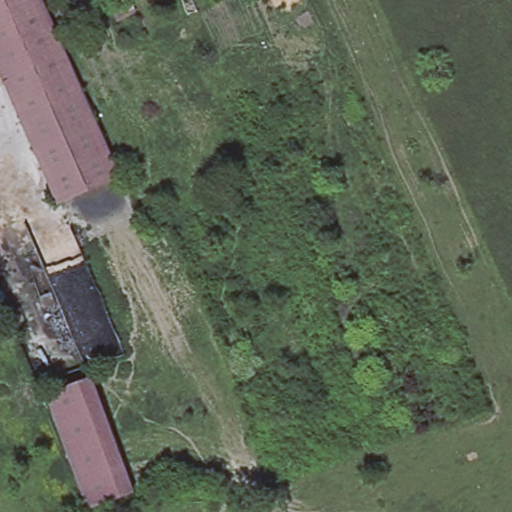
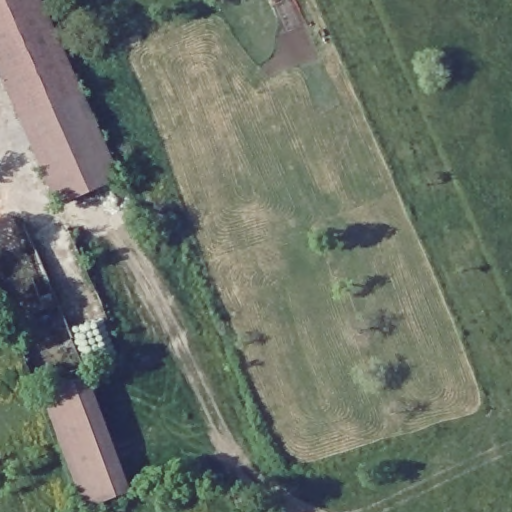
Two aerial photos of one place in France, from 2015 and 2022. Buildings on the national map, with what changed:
unchanged [(52,203),(0,86),(0,0),(35,0),(112,177),(52,203)]
unchanged [(90,376),(132,492),(87,507),(46,394),(90,376)]

